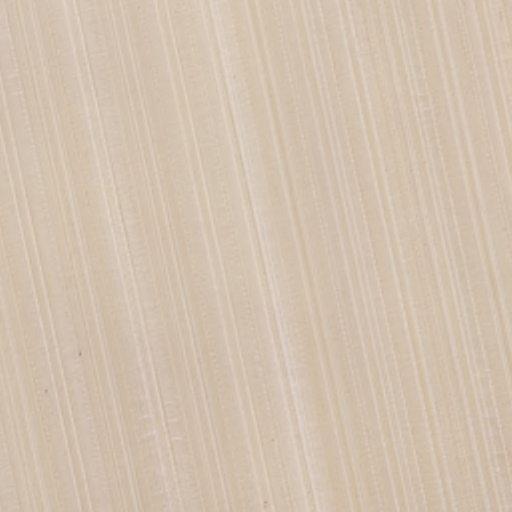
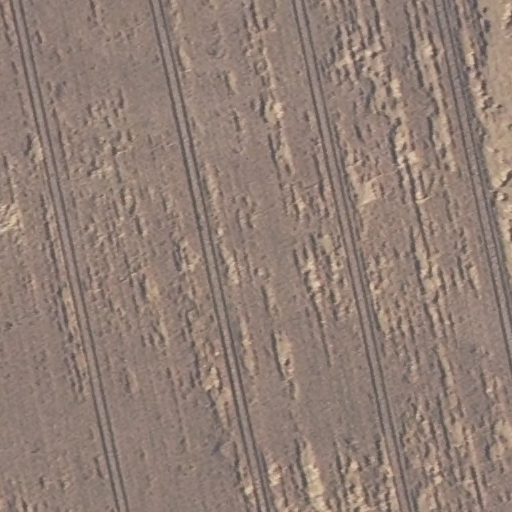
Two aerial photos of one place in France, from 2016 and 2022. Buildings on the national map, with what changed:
[]

